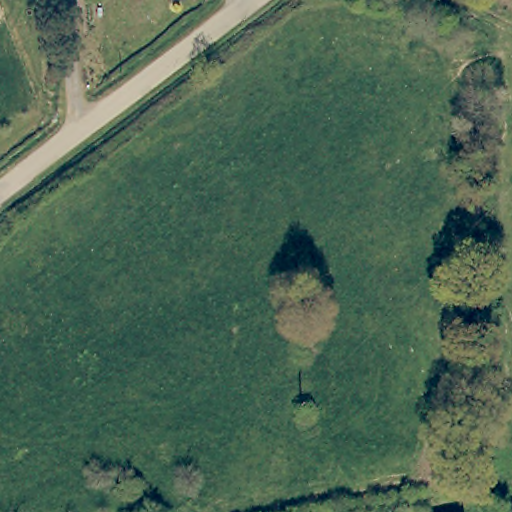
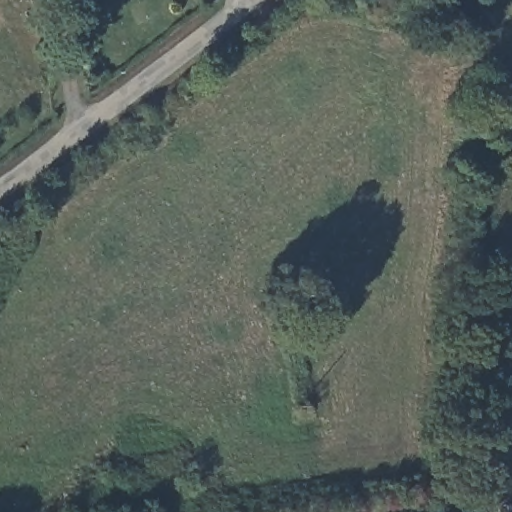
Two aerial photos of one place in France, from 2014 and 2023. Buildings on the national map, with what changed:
unchanged [(499,512),(499,509),(512,507),(512,512),(499,512)]

